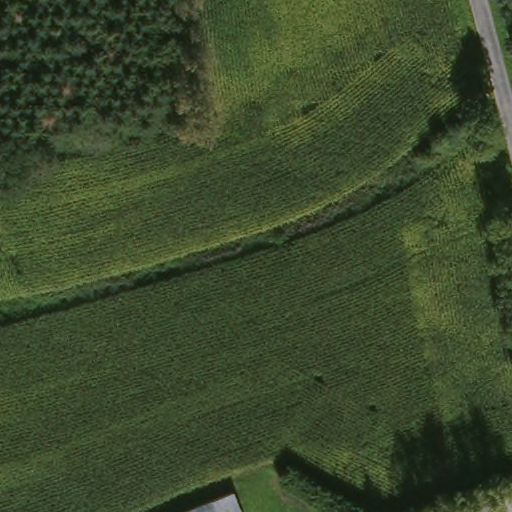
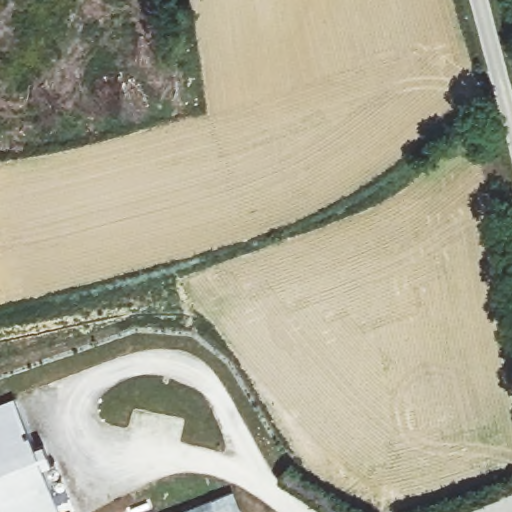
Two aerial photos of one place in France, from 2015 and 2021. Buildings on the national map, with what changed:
new [(13,397),(60,512),(0,512),(0,403),(13,397)]
unchanged [(240,512),(173,512),(230,488),(240,512)]

